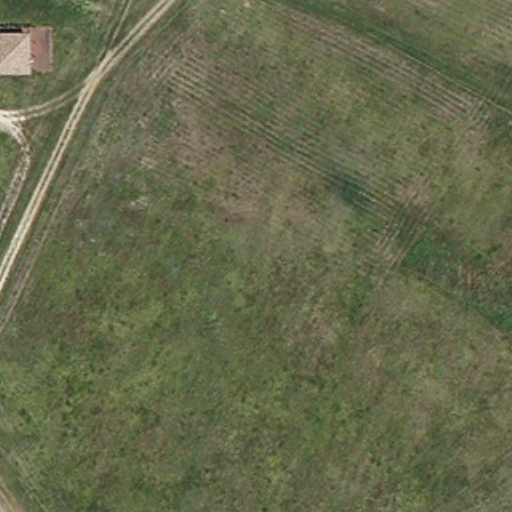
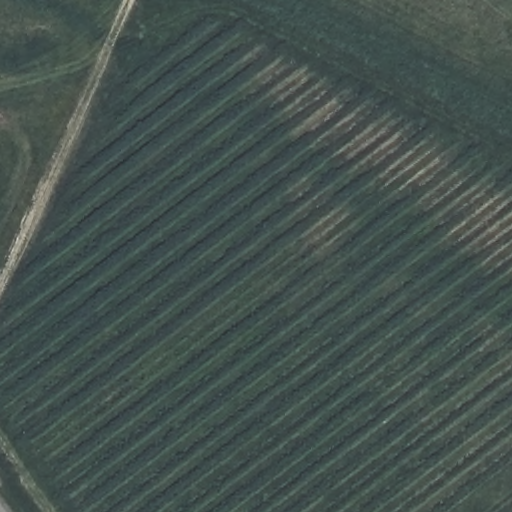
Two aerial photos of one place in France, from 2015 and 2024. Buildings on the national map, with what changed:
demolished [(33,35),(35,72),(0,73),(0,37),(33,35)]

